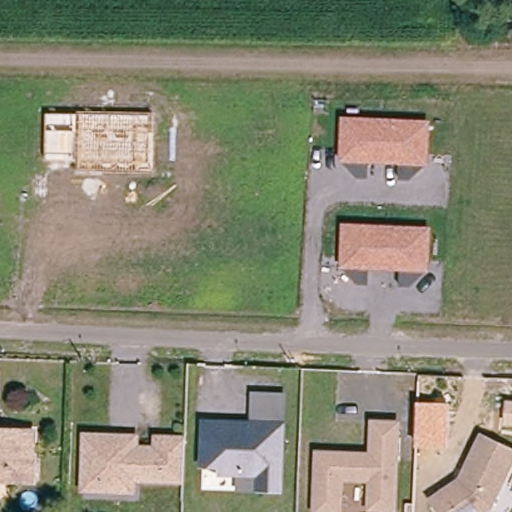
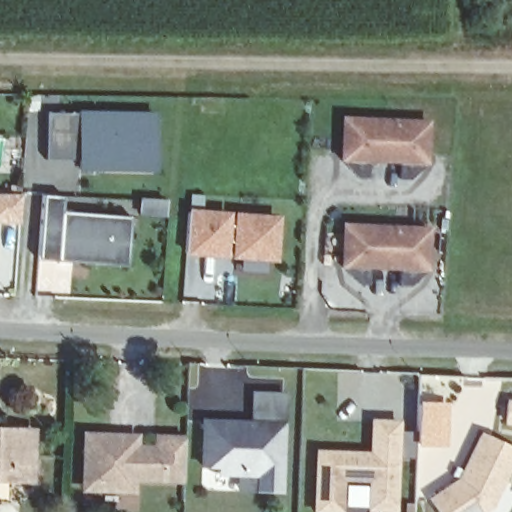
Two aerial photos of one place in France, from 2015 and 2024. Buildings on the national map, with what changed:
unchanged [(78,115),(78,112),(154,113),(155,174),(76,172),(77,160),(45,160),(45,114),(78,115)]
unchanged [(340,117),(431,120),(429,165),(424,165),(410,180),(399,180),(399,164),(369,164),(368,178),(358,178),(339,161),(340,117)]
new [(20,220),(0,220),(0,193),(21,194),(20,220)]
new [(41,258),(44,196),(63,197),(62,213),(129,219),(126,264),(41,258)]
new [(186,254),(188,209),(280,214),(277,260),(186,254)]
unchanged [(342,224),(432,226),(429,271),(423,272),(411,286),(399,286),(399,271),(369,271),(368,285),(358,283),(339,267),(342,224)]
unchanged [(241,470),(222,470),(223,463),(204,463),(205,419),(254,420),(255,391),(284,392),(284,422),(281,487),(260,486),(240,485),(241,470)]
unchanged [(409,400),(437,401),(436,440),(407,440),(409,400)]
unchanged [(506,424),(508,405),(512,405),(512,425),(506,424)]
unchanged [(395,507),(370,506),(371,477),(342,476),(340,510),(316,510),(318,450),(373,452),(374,420),(398,420),(395,507)]
unchanged [(33,481),(13,480),(0,479),(0,425),(36,428),(33,481)]
unchanged [(80,490),(81,460),(82,436),(100,437),(100,443),(110,443),(110,437),(133,438),(133,450),(153,450),(154,440),(182,440),(180,483),(131,481),(131,492),(80,490)]
unchanged [(492,509),(487,512),(438,512),(431,501),(461,481),(482,437),(512,452),(512,467),(492,509)]

